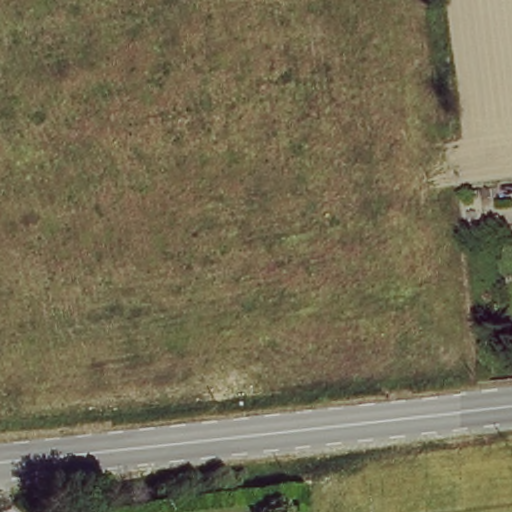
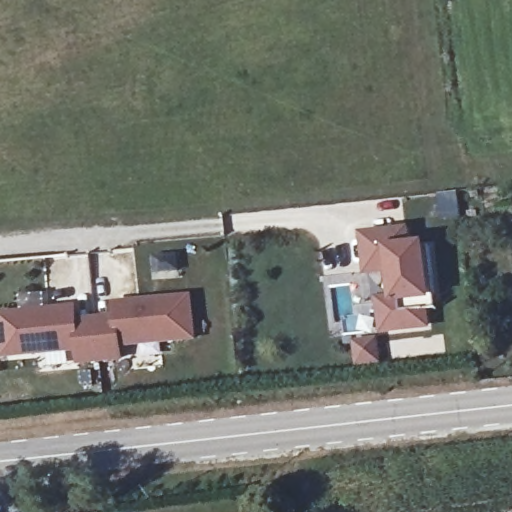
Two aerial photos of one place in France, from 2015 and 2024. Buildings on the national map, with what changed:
new [(413,316),(415,330),(372,334),(368,306),(388,303),(385,272),(356,276),(355,268),(352,241),(393,237),(395,254),(418,251),(424,301),(425,314),(413,316)]
new [(70,313),(72,327),(111,322),(110,309),(185,302),(190,342),(115,348),(117,362),(75,367),(73,353),(0,361),(0,320),(70,313)]

